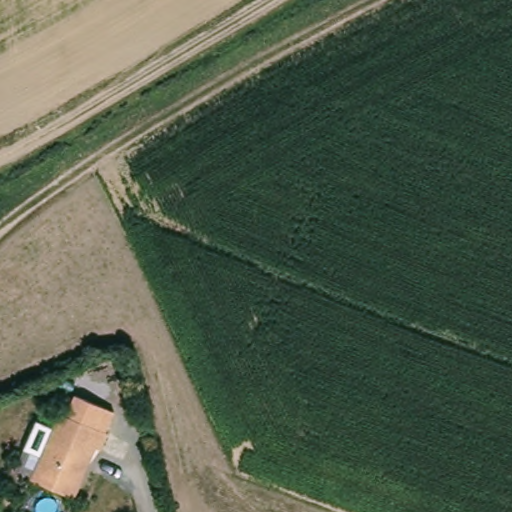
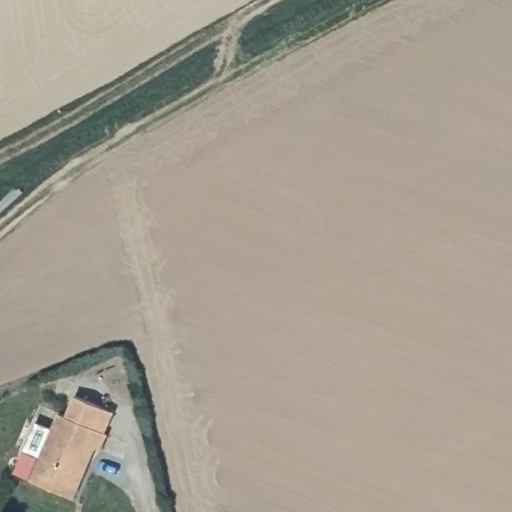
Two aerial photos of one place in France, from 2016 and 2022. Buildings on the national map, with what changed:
unchanged [(45,457),(30,450),(44,423),(60,431),(68,416),(116,439),(107,456),(100,452),(75,499),(33,479),(45,457)]

